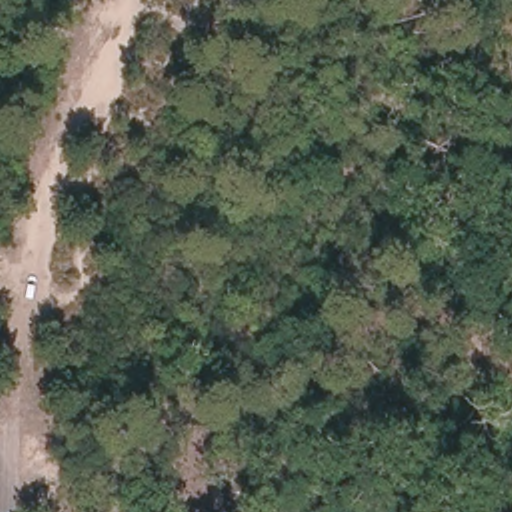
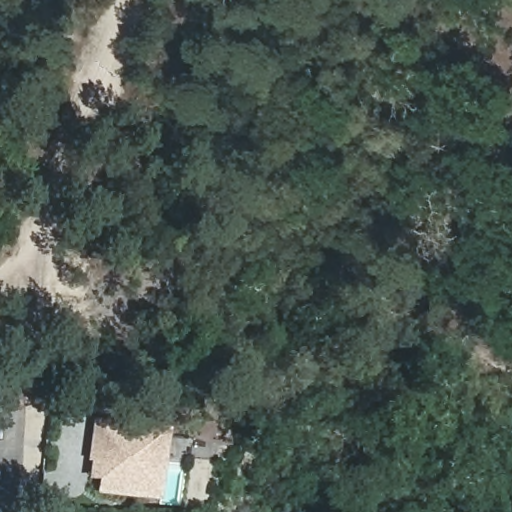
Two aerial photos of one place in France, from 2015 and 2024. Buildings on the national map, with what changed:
new [(93,428),(149,436),(158,437),(149,500),(140,499),(95,493),(96,481),(85,479),(88,461),(93,428)]

